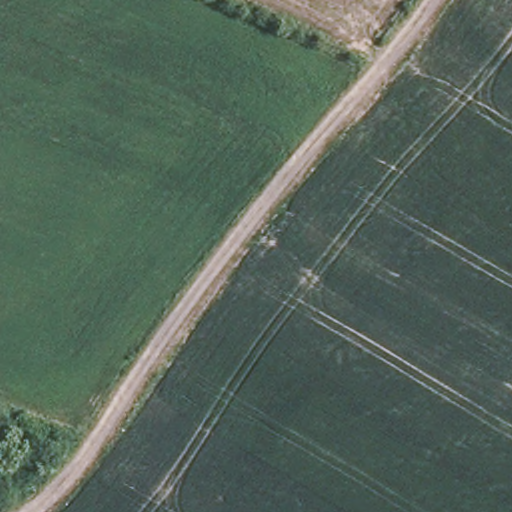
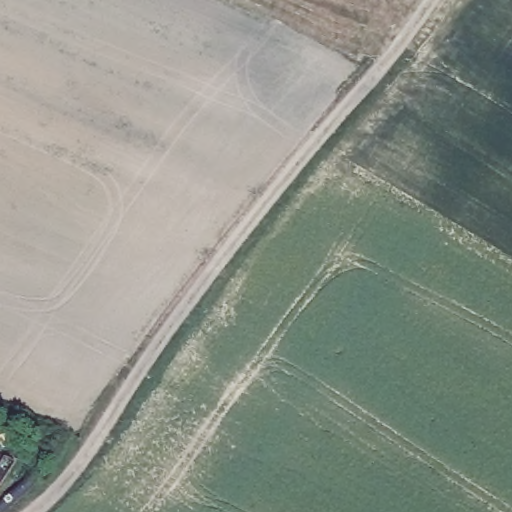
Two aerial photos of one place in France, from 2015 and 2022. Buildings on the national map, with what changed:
[]

